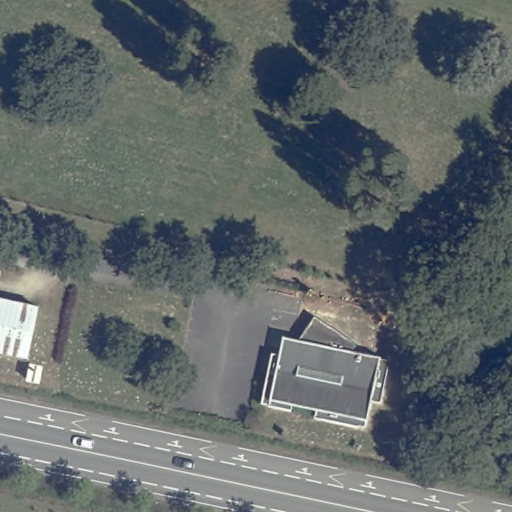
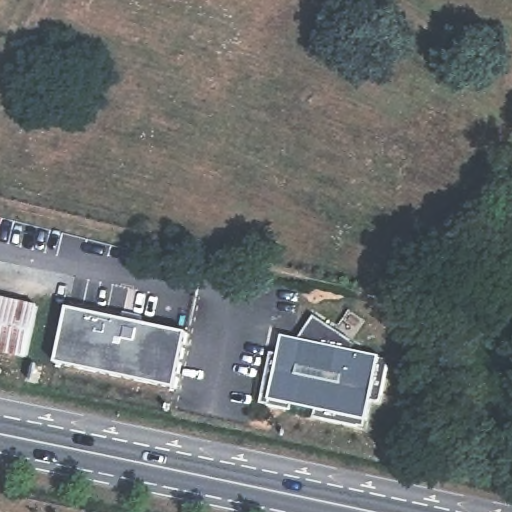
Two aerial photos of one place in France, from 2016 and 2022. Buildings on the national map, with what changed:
unchanged [(41,312),(30,362),(0,355),(0,303),(41,312)]
new [(189,334),(176,389),(56,364),(67,309),(189,334)]
unchanged [(361,340),(357,350),(395,357),(392,371),(387,401),(376,399),(370,429),(317,418),(319,410),(295,405),(294,410),(263,404),(273,352),(282,353),(291,355),(301,339),(310,326),(317,314),(361,340)]

